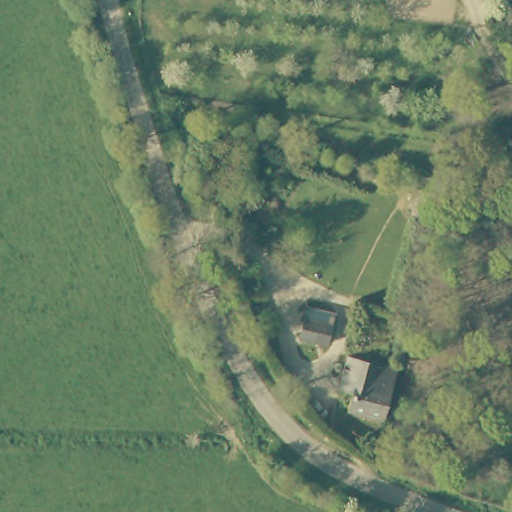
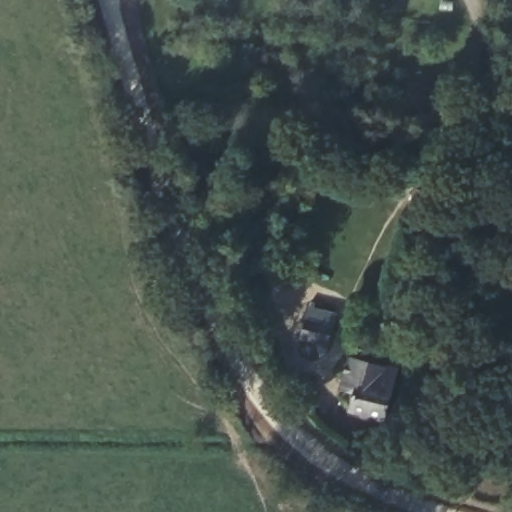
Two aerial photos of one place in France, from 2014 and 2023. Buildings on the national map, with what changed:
unchanged [(306,320),(335,327),(330,344),(302,337),(306,320)]
unchanged [(397,370),(383,422),(345,410),(351,391),(337,386),(340,379),(347,358),(397,370)]

